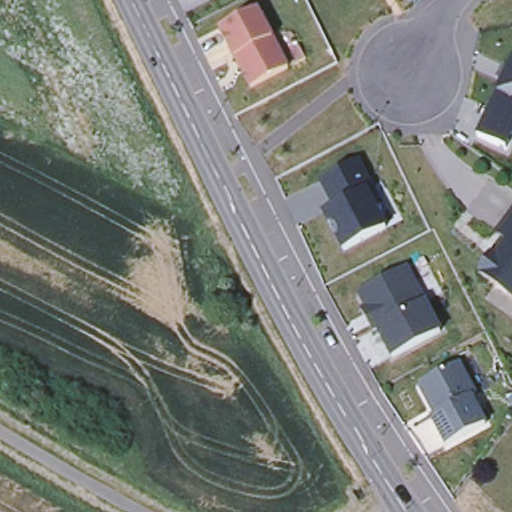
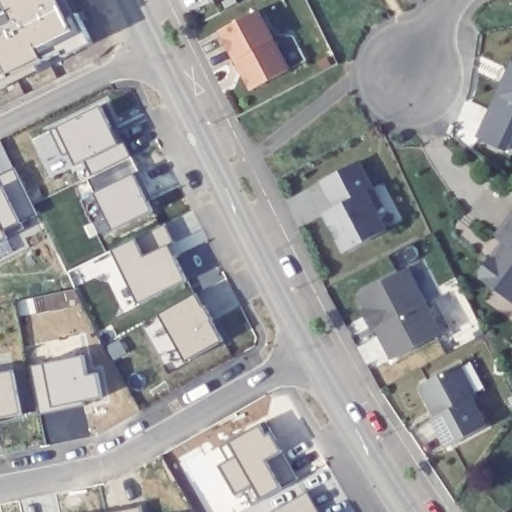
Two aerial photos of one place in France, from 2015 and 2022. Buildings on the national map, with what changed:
new [(0,75),(0,0),(58,0),(77,38),(0,75)]
unchanged [(208,0),(212,0),(209,2),(208,0)]
unchanged [(222,32),(260,12),(291,72),(254,91),(245,76),(237,61),(222,32)]
unchanged [(512,63),(512,139),(507,151),(477,137),(512,63)]
new [(94,176),(86,163),(75,166),(69,155),(62,157),(49,130),(99,107),(116,145),(124,143),(137,172),(131,176),(150,212),(111,230),(93,193),(87,180),(94,176)]
unchanged [(329,212),(334,210),(320,183),(357,163),(382,208),(376,211),(386,232),(344,254),(335,237),(324,215),(329,212)]
new [(0,185),(0,175),(12,170),(40,217),(3,232),(6,240),(0,242),(0,189),(1,189),(0,185)]
unchanged [(496,290),(482,279),(482,272),(491,260),(504,242),(496,237),(512,214),(512,302),(496,290)]
new [(165,225),(172,242),(166,246),(183,281),(137,303),(110,251),(165,225)]
unchanged [(362,313),(367,312),(361,300),(362,293),(406,270),(441,335),(393,360),(377,330),(372,332),(362,313)]
new [(194,297),(221,342),(184,361),(159,315),(194,297)]
new [(84,358),(87,375),(97,375),(102,400),(82,403),(82,407),(39,415),(32,367),(84,358)]
unchanged [(472,400),(487,427),(448,448),(432,420),(440,416),(434,405),(429,403),(422,391),(423,385),(459,366),(476,397),(472,400)]
new [(21,416),(0,420),(0,376),(14,373),(21,416)]
new [(262,435),(269,432),(297,481),(263,500),(253,484),(234,495),(220,466),(237,457),(230,442),(257,426),(262,435)]
new [(316,512),(272,512),(306,493),(316,512)]
new [(139,508),(140,512),(119,512),(139,508)]

